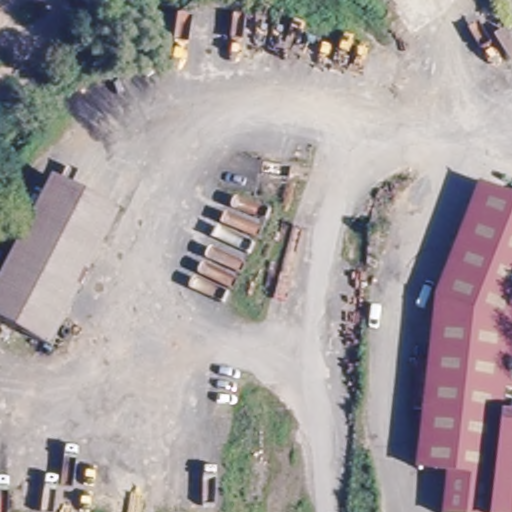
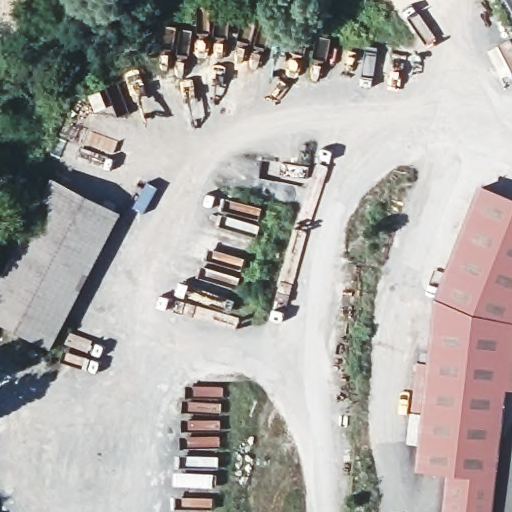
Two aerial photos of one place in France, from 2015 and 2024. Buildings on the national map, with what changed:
unchanged [(121,214),(53,348),(0,321),(0,281),(52,179),(121,214)]
unchanged [(477,187),(512,201),(512,326),(433,299),(477,187)]
unchanged [(501,390),(487,512),(440,512),(444,472),(414,470),(421,411),(409,409),(414,363),(426,365),(433,299),(512,326),(512,391),(501,390)]
unchanged [(490,512),(501,422),(512,424),(512,512),(490,512)]

